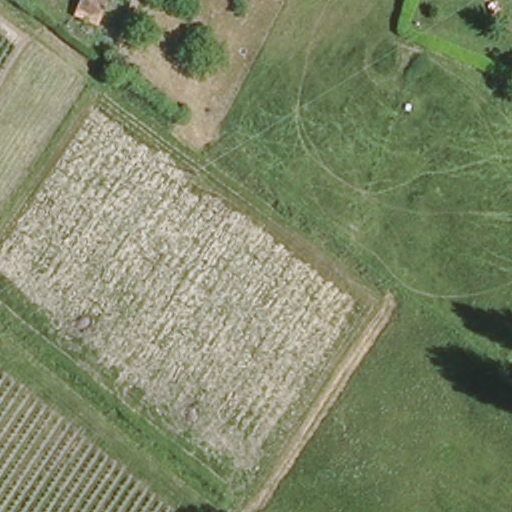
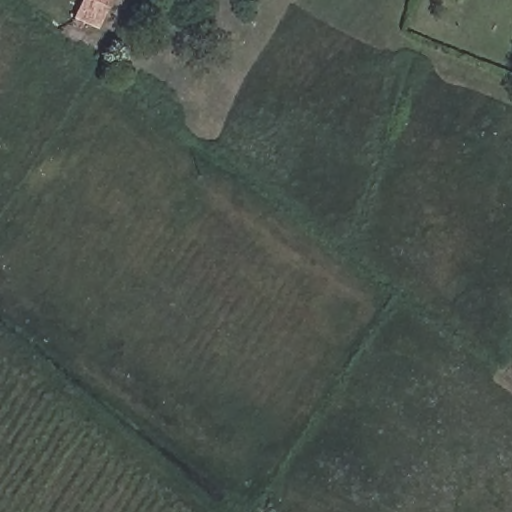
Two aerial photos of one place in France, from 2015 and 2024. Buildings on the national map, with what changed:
unchanged [(81,0),(108,0),(98,25),(75,15),(81,0)]

